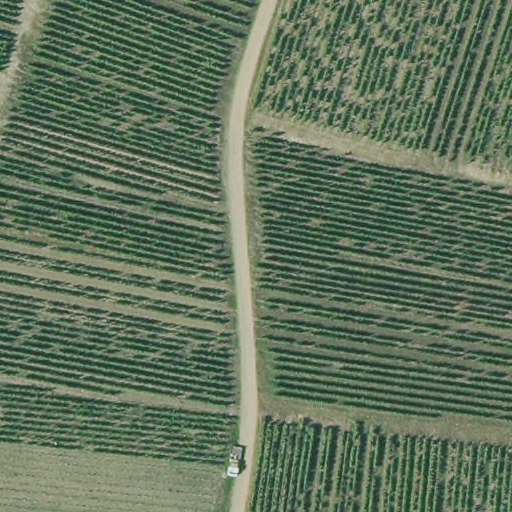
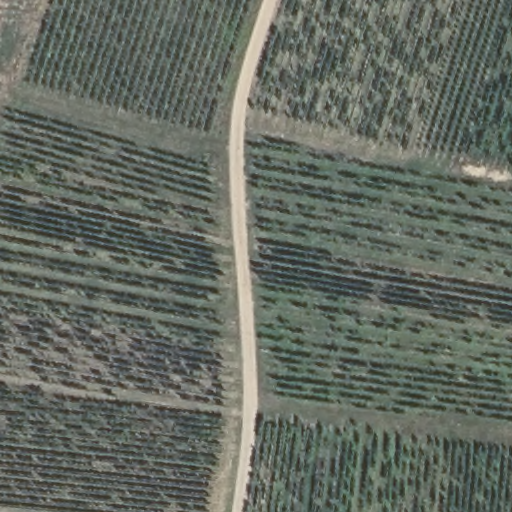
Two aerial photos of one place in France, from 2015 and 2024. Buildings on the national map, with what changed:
[]

